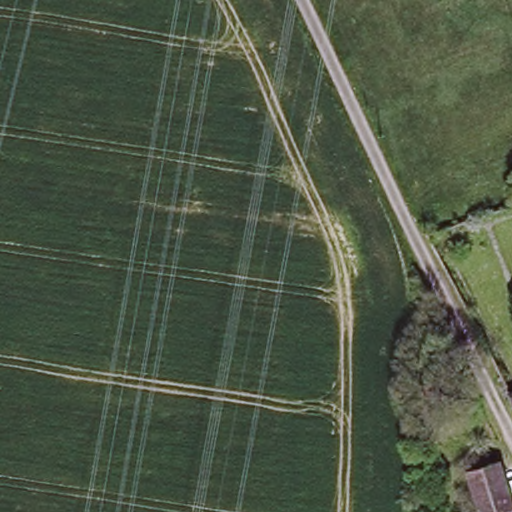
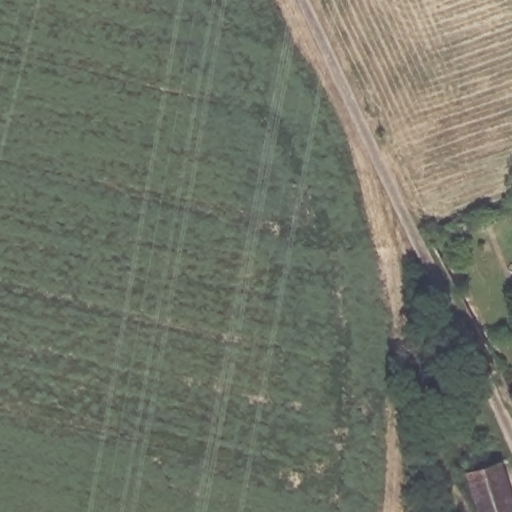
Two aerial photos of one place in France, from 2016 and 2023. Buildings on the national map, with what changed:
unchanged [(500,463),(512,498),(512,509),(504,512),(481,512),(470,473),(500,463)]

